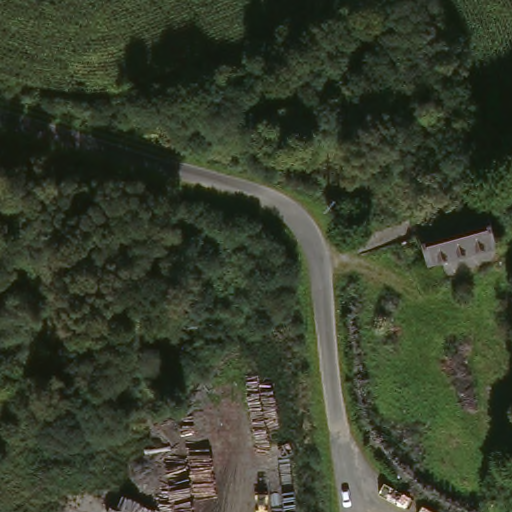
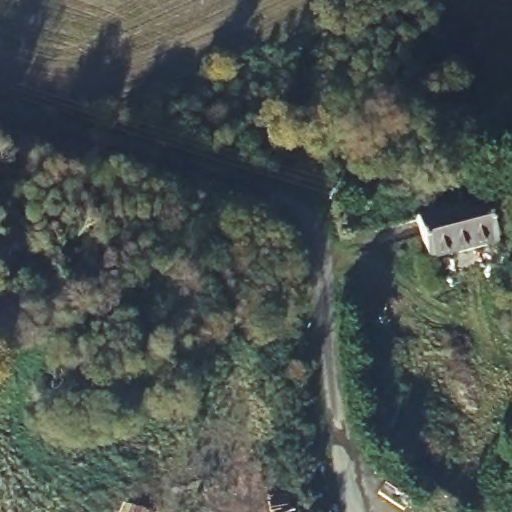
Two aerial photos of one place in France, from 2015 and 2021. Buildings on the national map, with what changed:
unchanged [(478,194),(490,236),(423,255),(411,214),(478,194)]

